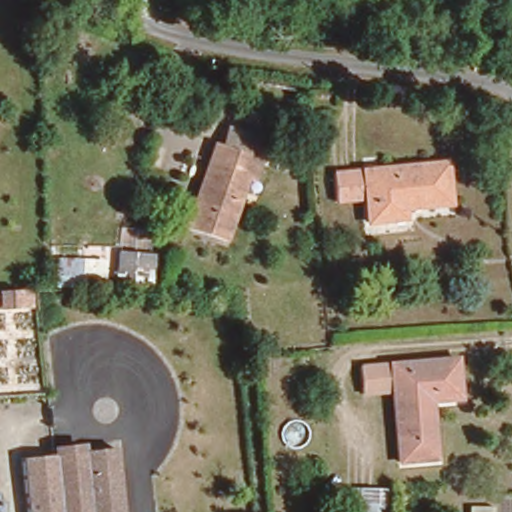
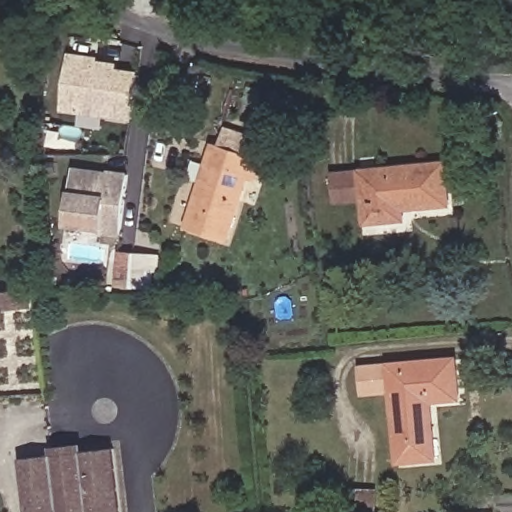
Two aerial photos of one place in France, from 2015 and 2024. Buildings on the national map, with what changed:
new [(62,110),(70,52),(99,56),(99,60),(118,63),(118,68),(141,71),(133,122),(62,110)]
unchanged [(246,177),(242,176),(222,241),(181,229),(207,143),(252,155),(246,177)]
unchanged [(442,156),(445,199),(405,202),(405,212),(369,215),(367,195),(364,162),(442,156)]
unchanged [(367,195),(333,198),(331,165),(364,162),(367,195)]
new [(100,234),(100,230),(66,225),(75,166),(109,171),(109,169),(129,172),(120,236),(100,234)]
unchanged [(110,284),(112,273),(117,273),(118,253),(137,253),(156,254),(156,286),(140,286),(110,284)]
unchanged [(28,306),(0,307),(0,295),(27,294),(28,306)]
unchanged [(355,363),(449,359),(452,399),(424,400),(426,458),(390,460),(386,401),(356,401),(355,363)]
unchanged [(31,512),(26,461),(62,457),(119,451),(125,512),(31,512)]
unchanged [(337,512),(338,488),(388,491),(388,512),(337,512)]
unchanged [(502,509),(501,512),(477,512),(477,508),(502,509)]

